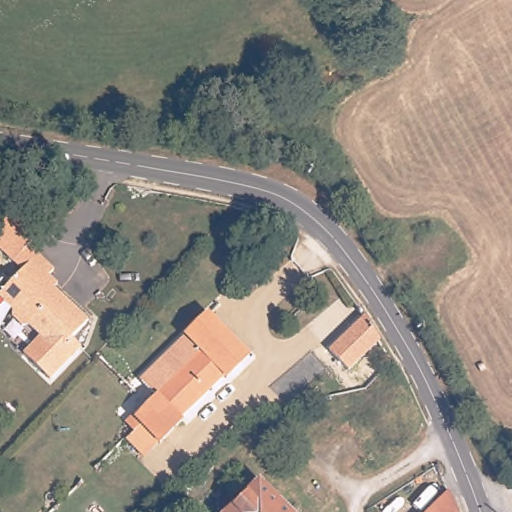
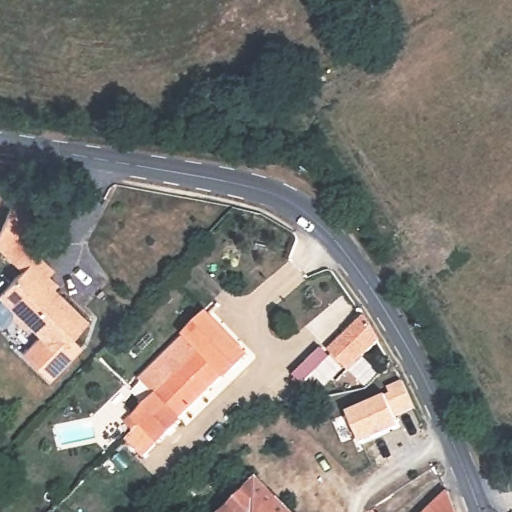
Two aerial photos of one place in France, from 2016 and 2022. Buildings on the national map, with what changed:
unchanged [(83,347),(52,380),(25,355),(42,337),(30,326),(23,327),(13,318),(13,310),(0,296),(0,294),(23,271),(40,254),(56,270),(51,275),(60,285),(57,289),(90,321),(73,338),(83,347)]
unchanged [(160,390),(175,375),(159,358),(161,355),(212,307),(255,353),(232,375),(228,372),(185,415),(160,390)]
unchanged [(363,317),(377,341),(346,368),(328,350),(363,317)]
new [(384,395),(389,393),(387,386),(405,380),(416,408),(397,415),(401,427),(361,445),(347,412),(384,395)]
unchanged [(138,411),(140,410),(151,397),(160,390),(185,415),(187,418),(165,440),(145,420),(138,411)]
unchanged [(262,477),(282,497),(283,496),(298,512),(226,512),(262,477)]
unchanged [(448,487),(457,512),(422,512),(448,487)]

